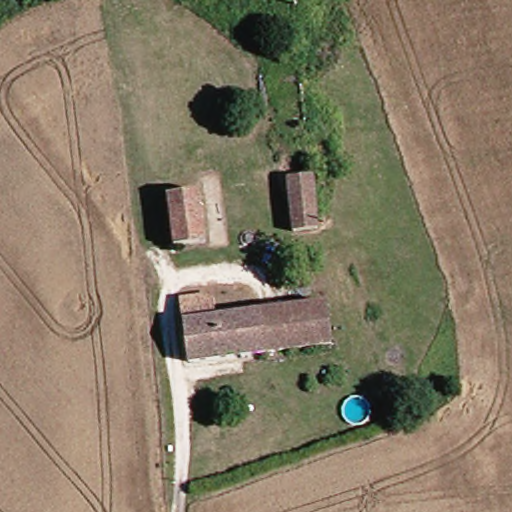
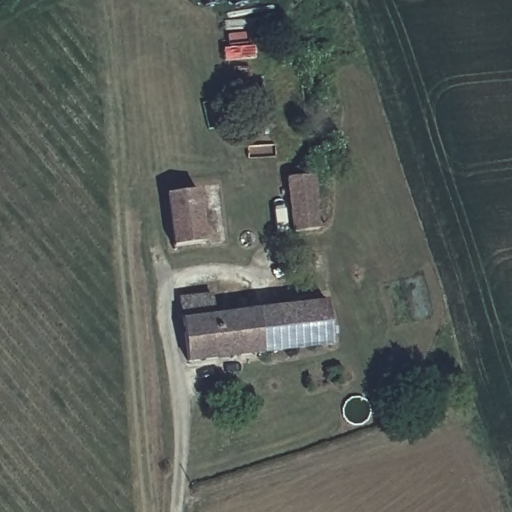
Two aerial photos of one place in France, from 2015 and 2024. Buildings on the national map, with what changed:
unchanged [(279,154),(275,91),(316,89),(320,150),(279,154)]
unchanged [(322,180),(327,227),(298,230),(294,182),(322,180)]
unchanged [(206,194),(211,241),(176,245),(171,197),(206,194)]
unchanged [(332,306),(337,346),(189,362),(185,322),(332,306)]

